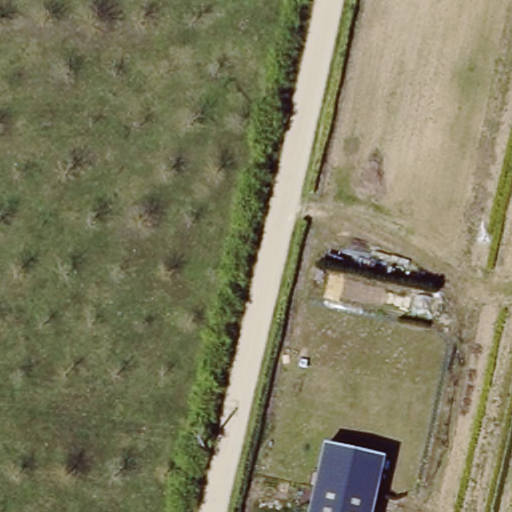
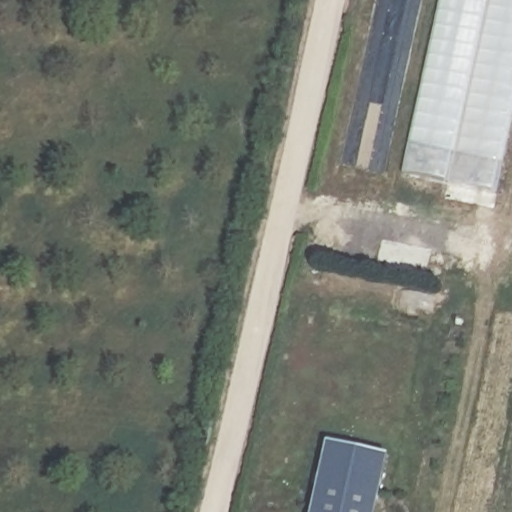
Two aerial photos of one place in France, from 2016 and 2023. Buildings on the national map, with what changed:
new [(436,0),(512,0),(512,114),(495,195),(398,174),(436,0)]
unchanged [(373,512),(310,512),(323,445),(385,458),(373,512)]

